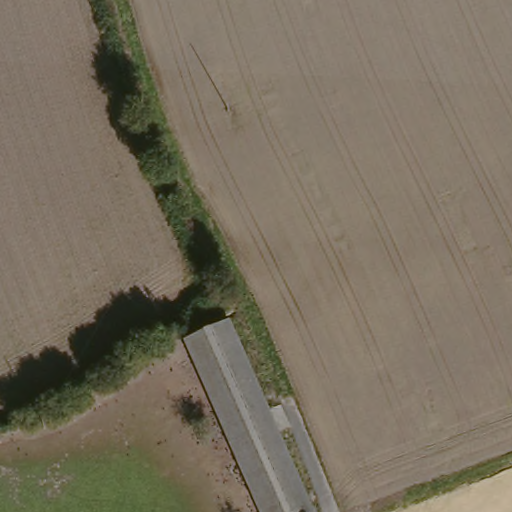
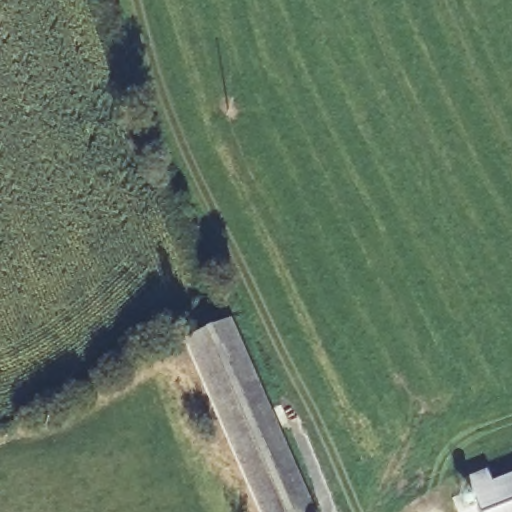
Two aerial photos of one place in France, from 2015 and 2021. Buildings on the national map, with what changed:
unchanged [(235,320),(314,512),(266,512),(195,337),(235,320)]
new [(512,512),(476,512),(468,491),(512,475),(512,512)]

